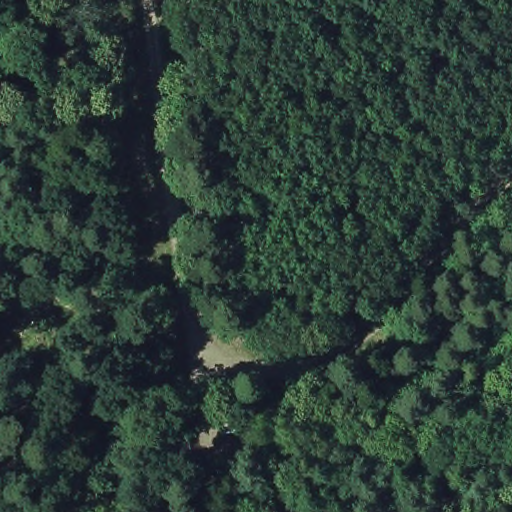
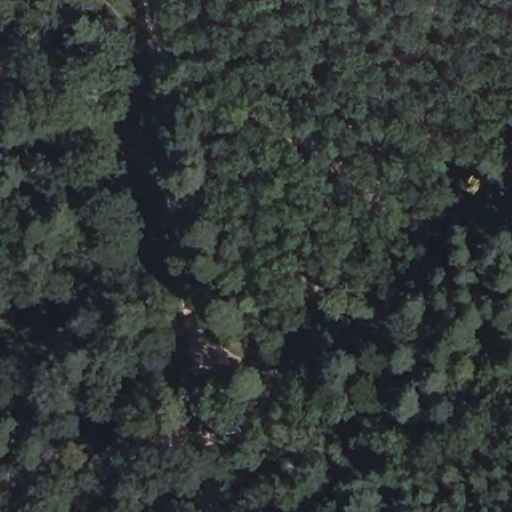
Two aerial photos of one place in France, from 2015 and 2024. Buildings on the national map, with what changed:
unchanged [(146,292),(153,362),(47,355),(47,292),(146,292)]

